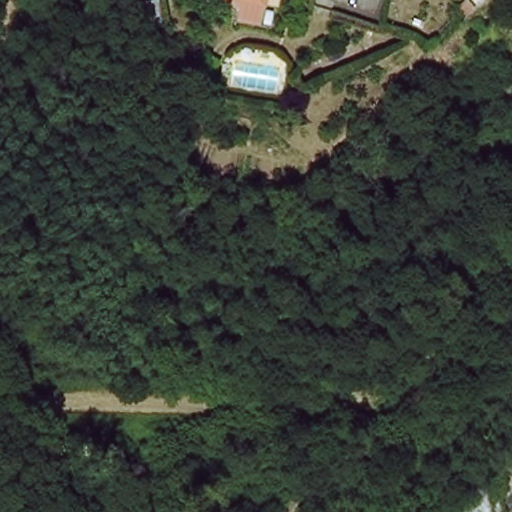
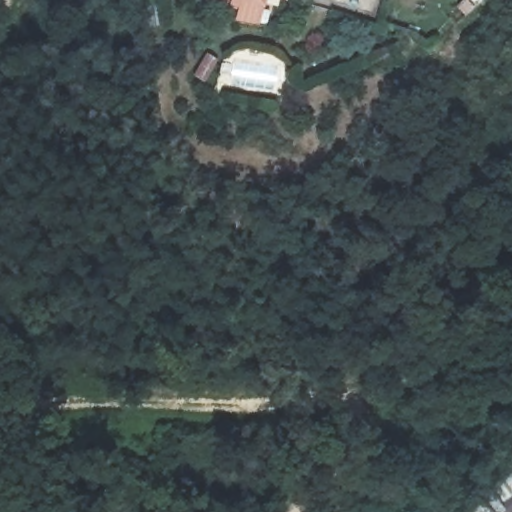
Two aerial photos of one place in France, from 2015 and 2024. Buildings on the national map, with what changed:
unchanged [(269,24),(248,19),(246,19),(250,4),(240,2),(241,0),(275,0),(274,2),(269,24)]

